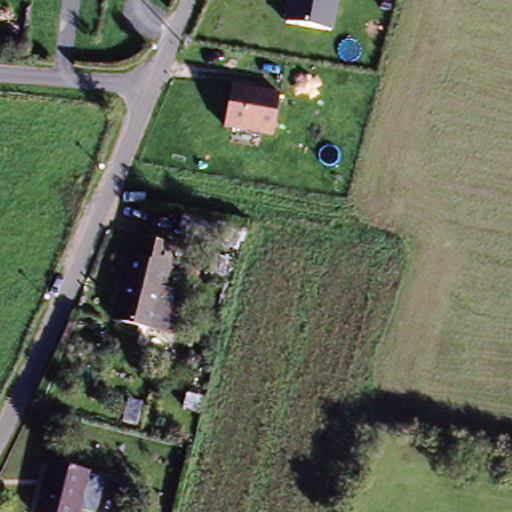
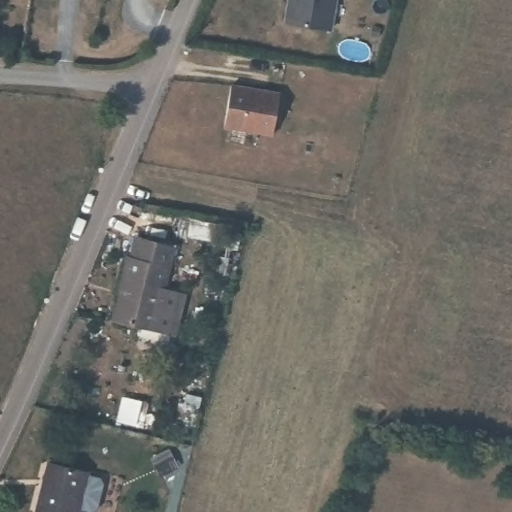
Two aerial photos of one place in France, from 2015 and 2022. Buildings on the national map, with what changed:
unchanged [(284,24),(286,1),(283,0),(339,0),(334,31),(284,24)]
unchanged [(280,94),(274,140),(223,132),(230,86),(280,94)]
unchanged [(125,256),(132,257),(138,236),(173,246),(152,330),(109,319),(125,256)]
unchanged [(44,461),(83,468),(74,512),(34,512),(44,461)]

